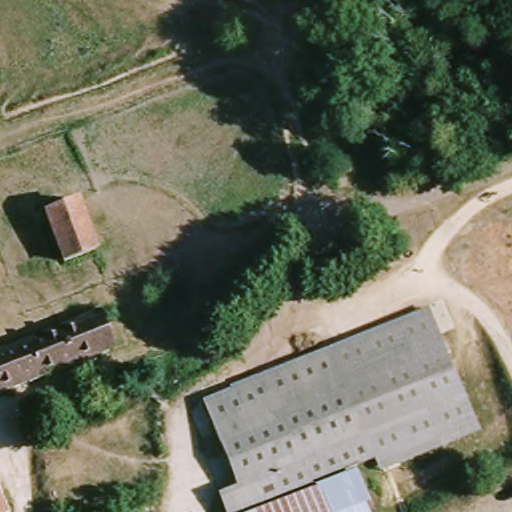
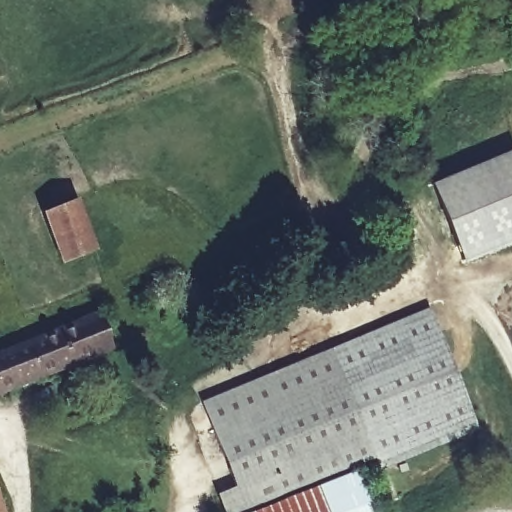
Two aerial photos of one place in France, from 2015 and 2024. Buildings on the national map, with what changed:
new [(512,151),(512,239),(462,260),(431,185),(512,151)]
unchanged [(60,262),(43,218),(75,202),(93,250),(60,262)]
unchanged [(435,307),(485,432),(383,472),(376,457),(367,460),(353,428),(320,355),(435,307)]
unchanged [(127,350),(0,395),(0,348),(114,312),(127,350)]
unchanged [(222,502),(218,492),(228,487),(195,402),(320,355),(353,428),(222,502)]
unchanged [(367,460),(236,512),(227,512),(222,502),(353,428),(367,460)]
unchanged [(360,477),(373,512),(263,512),(360,477)]
unchanged [(0,500),(5,512),(0,512),(0,500)]

